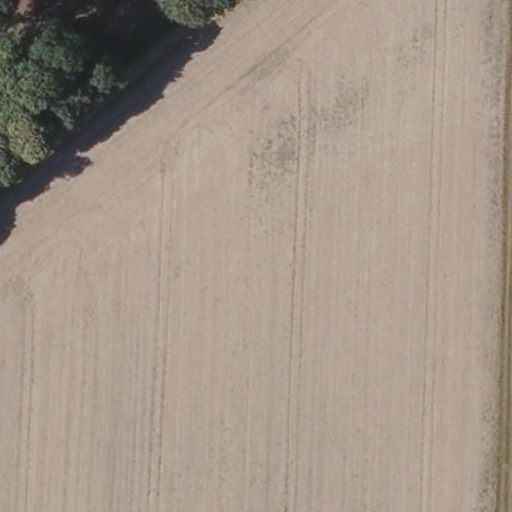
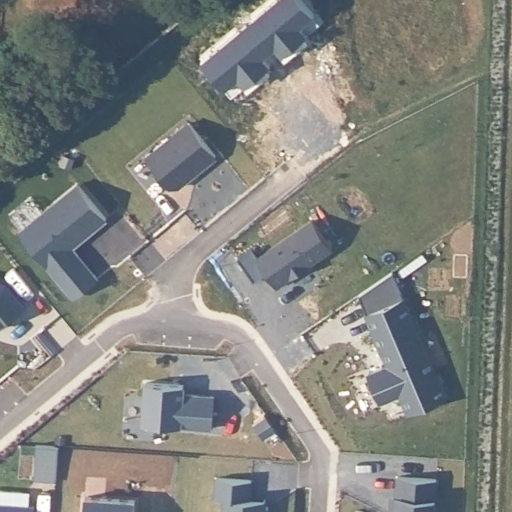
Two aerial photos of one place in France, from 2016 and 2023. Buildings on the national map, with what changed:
new [(251,16),(272,0),(304,0),(315,14),(321,21),(307,33),(281,54),(251,16)]
new [(262,55),(239,26),(251,16),(274,46),(262,55)]
new [(222,88),(199,59),(239,26),(269,64),(243,84),(229,96),(222,88)]
new [(187,120),(215,154),(174,187),(167,187),(143,156),(187,120)]
new [(75,180),(105,217),(69,246),(96,279),(72,298),(15,229),(75,180)]
new [(331,249),(276,288),(267,275),(253,284),(237,260),(252,249),(258,258),(312,221),(331,249)]
new [(392,274),(445,399),(408,414),(399,394),(379,403),(367,376),(388,368),(358,297),(392,274)]
new [(24,305),(0,325),(0,280),(5,282),(24,305)]
new [(146,384),(183,387),(183,396),(214,398),(211,429),(143,424),(146,384)]
new [(58,448),(56,483),(33,481),(36,446),(58,448)]
new [(434,512),(395,512),(397,478),(436,481),(434,512)]
new [(225,499),(215,499),(216,479),(251,482),(250,500),(256,508),(268,508),(268,512),(224,512),(225,499)]
new [(85,498),(135,501),(134,512),(84,512),(85,498)]
new [(34,509),(34,512),(0,512),(0,506),(34,509)]

